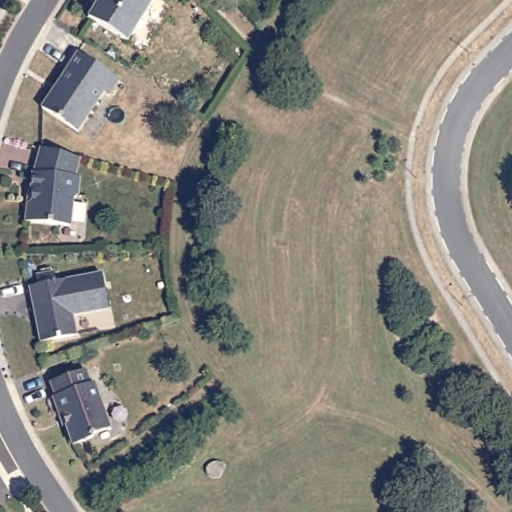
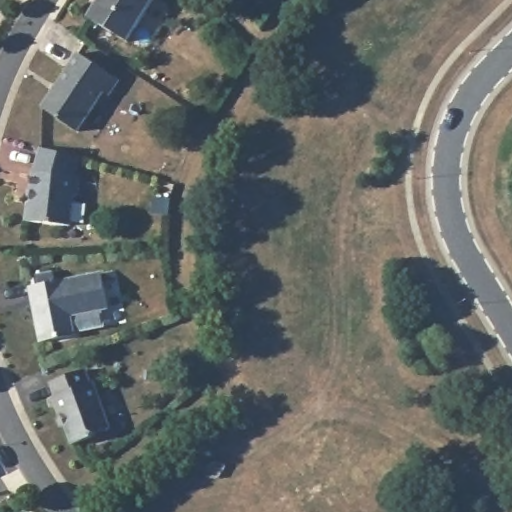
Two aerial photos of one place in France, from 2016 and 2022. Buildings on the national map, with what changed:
unchanged [(128,40),(88,17),(98,0),(152,0),(128,40)]
unchanged [(118,80),(108,95),(103,91),(77,131),(41,107),(77,52),(118,80)]
unchanged [(84,153),(79,171),(84,172),(82,190),(77,194),(75,220),(30,216),(32,198),(36,195),(37,185),(35,185),(37,167),(39,167),(45,143),(84,153)]
unchanged [(34,286),(42,285),(40,275),(58,271),(60,281),(106,272),(113,308),(77,315),(81,334),(45,342),(41,322),(38,306),(34,286)]
unchanged [(85,369),(90,384),(93,383),(109,428),(93,433),(91,438),(72,444),(62,415),(59,416),(52,397),(55,396),(50,382),(85,369)]

